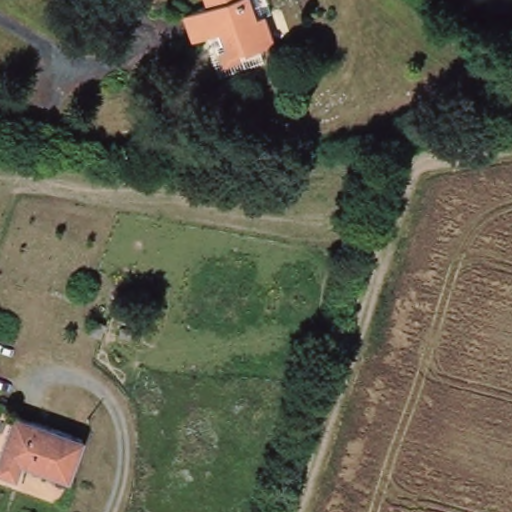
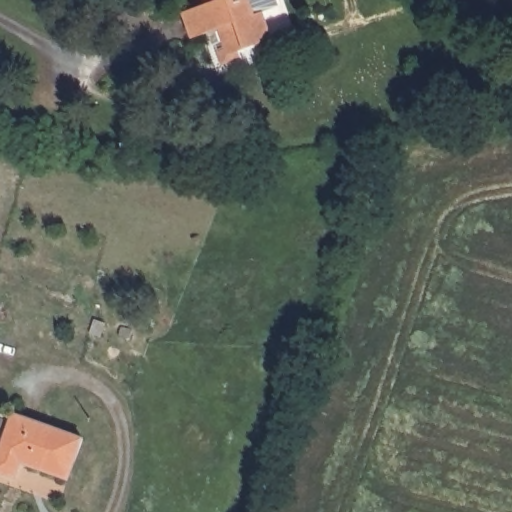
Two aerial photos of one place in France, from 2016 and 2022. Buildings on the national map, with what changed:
unchanged [(263,11),(274,41),(238,53),(241,59),(221,68),(215,54),(224,51),(215,30),(190,41),(178,14),(205,5),(203,0),(248,0),(253,14),(263,11)]
unchanged [(84,438),(70,480),(22,465),(18,479),(0,473),(0,449),(13,414),(84,438)]

